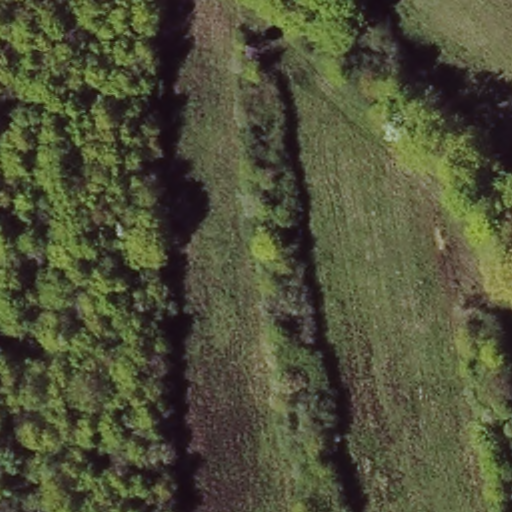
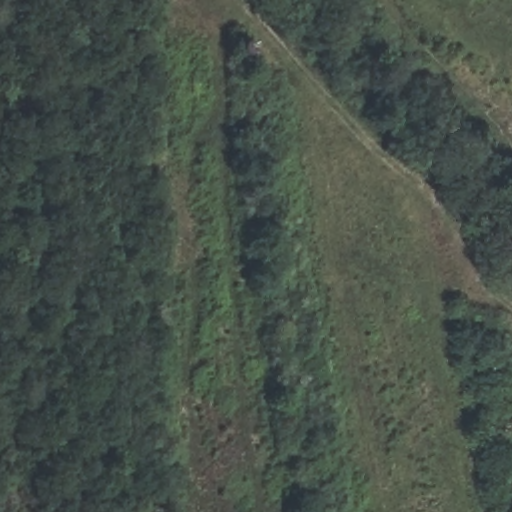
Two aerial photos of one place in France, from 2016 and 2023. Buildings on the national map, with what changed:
[]

